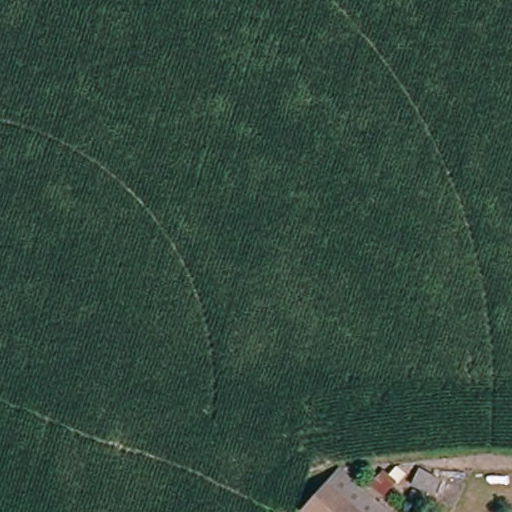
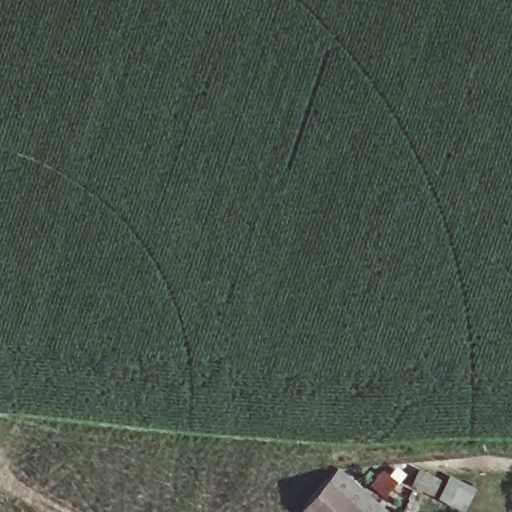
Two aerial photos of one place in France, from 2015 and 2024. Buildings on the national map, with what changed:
unchanged [(339,473),(341,473),(385,512),(307,512),(339,473)]

